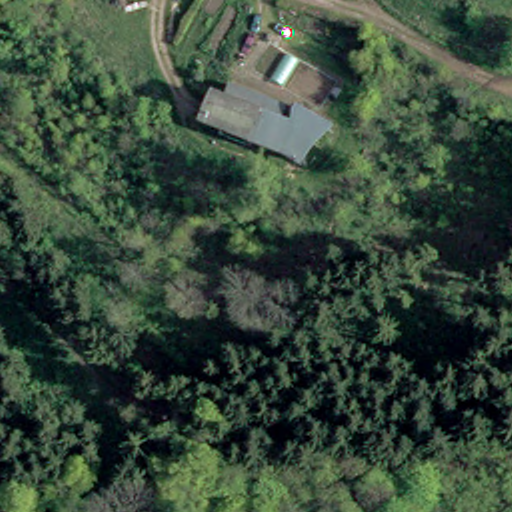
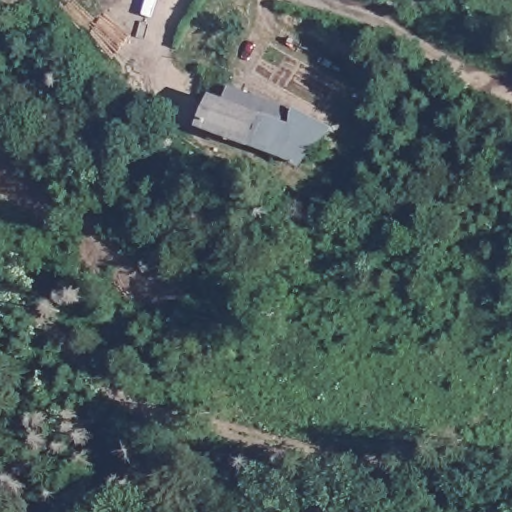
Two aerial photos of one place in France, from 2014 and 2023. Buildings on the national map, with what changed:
unchanged [(203,125),(214,90),(222,95),(228,81),(262,92),(256,107),(290,118),(297,102),(336,125),(299,165),(203,125)]

